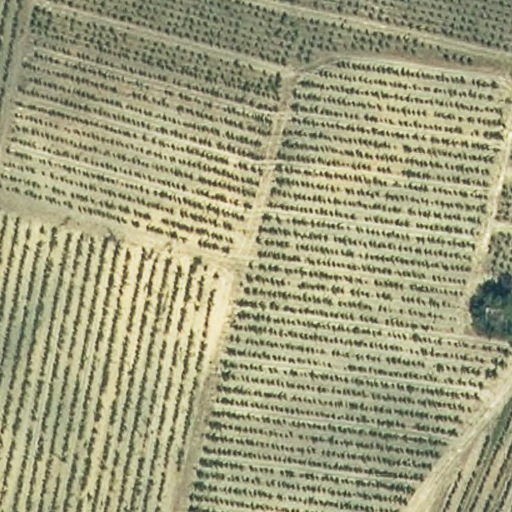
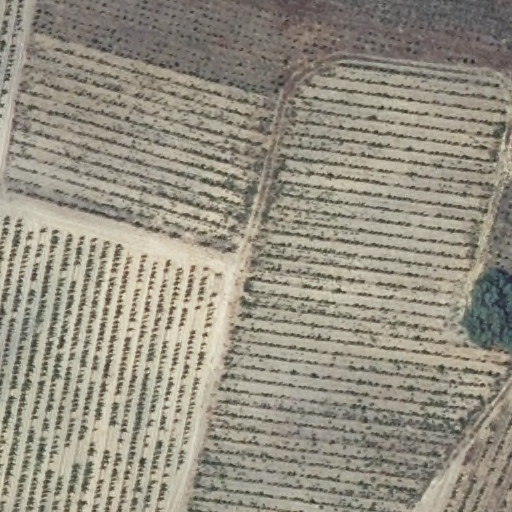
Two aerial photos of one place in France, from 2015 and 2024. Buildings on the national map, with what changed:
unchanged [(485,305),(512,308),(512,321),(512,328),(484,326),(485,305)]

